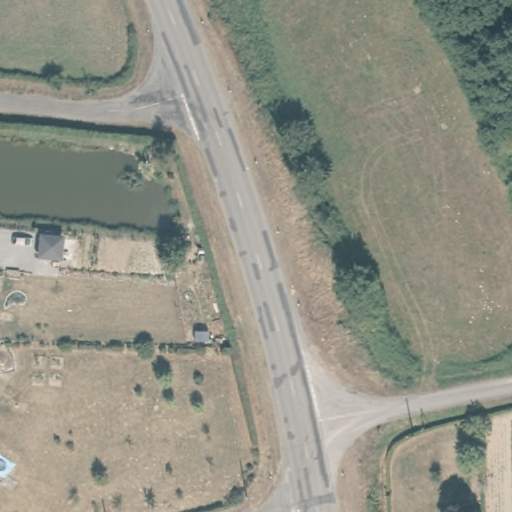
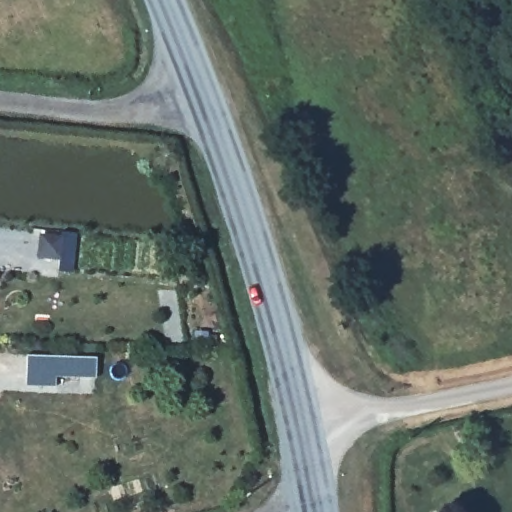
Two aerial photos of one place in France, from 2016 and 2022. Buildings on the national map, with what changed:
new [(96,358),(96,378),(54,376),(54,386),(24,385),(25,355),(96,358)]

